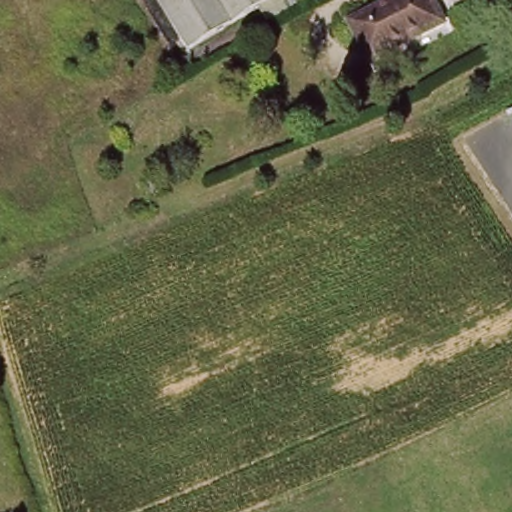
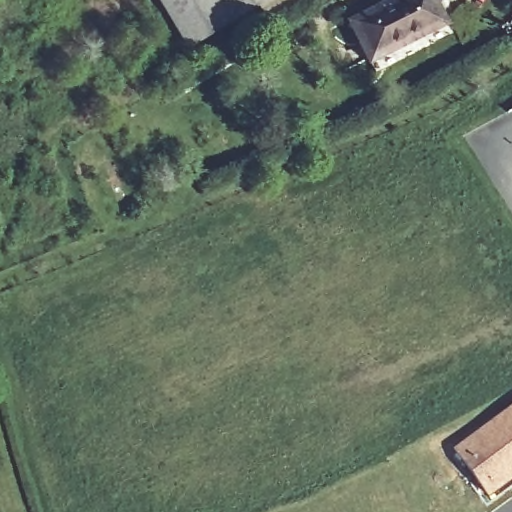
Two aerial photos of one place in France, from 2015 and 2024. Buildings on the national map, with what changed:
unchanged [(271,0),(187,52),(156,0),(271,0)]
unchanged [(399,0),(431,0),(443,22),(374,60),(355,23),(399,0)]
new [(488,496),(453,449),(512,405),(512,479),(488,496)]

